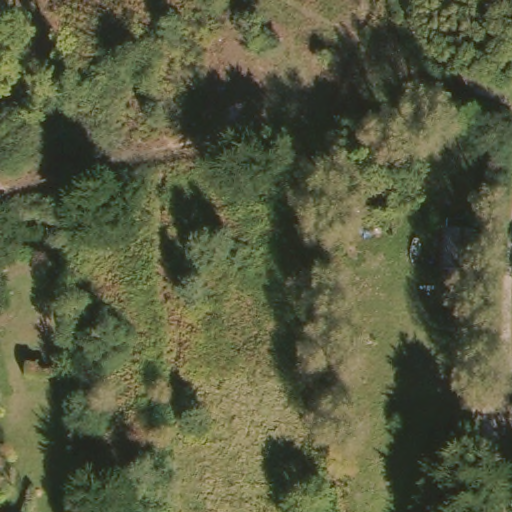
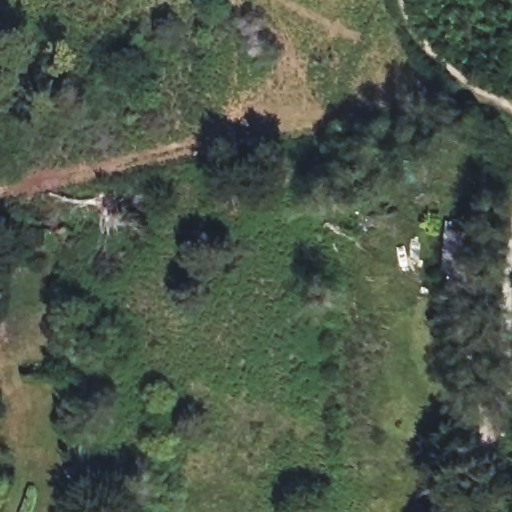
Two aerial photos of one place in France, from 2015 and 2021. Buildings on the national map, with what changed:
unchanged [(477,218),(475,268),(455,267),(457,217),(477,218)]

